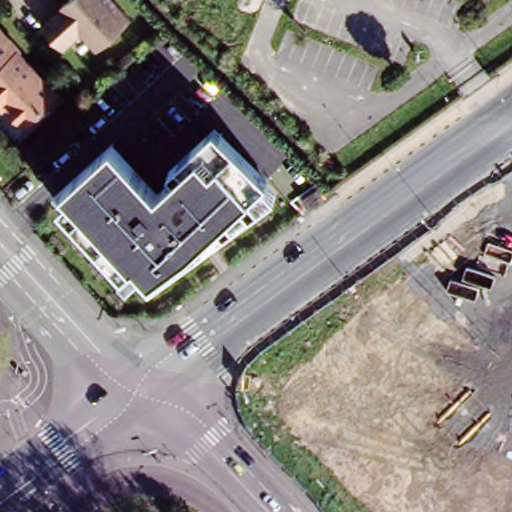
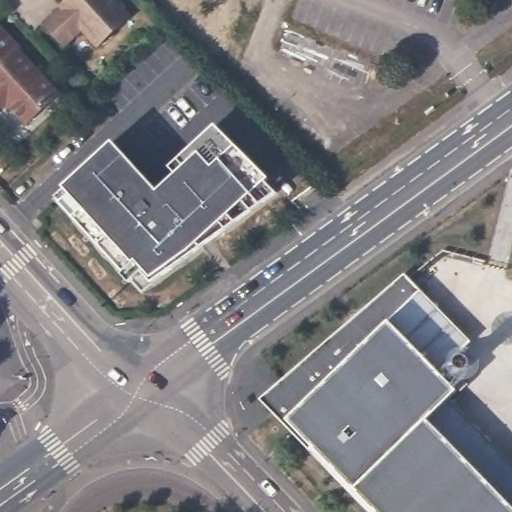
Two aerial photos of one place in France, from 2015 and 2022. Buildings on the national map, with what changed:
unchanged [(54,11),(53,10),(64,0),(101,0),(121,21),(90,50),(75,34),(56,50),(35,28),(48,17),(54,11)]
unchanged [(0,104),(0,26),(2,29),(22,51),(20,52),(59,96),(26,125),(8,105),(5,109),(0,104)]
unchanged [(152,283),(142,272),(131,282),(60,203),(70,195),(63,187),(113,142),(159,191),(177,175),(171,169),(216,126),(280,192),(152,283)]
new [(258,397),(404,271),(472,342),(471,365),(457,390),(447,389),(417,417),(509,512),(368,512),(262,403),(258,397)]
new [(512,474),(512,512),(509,512),(417,417),(438,397),(512,474)]
new [(262,403),(368,512),(362,512),(259,406),(262,403)]

